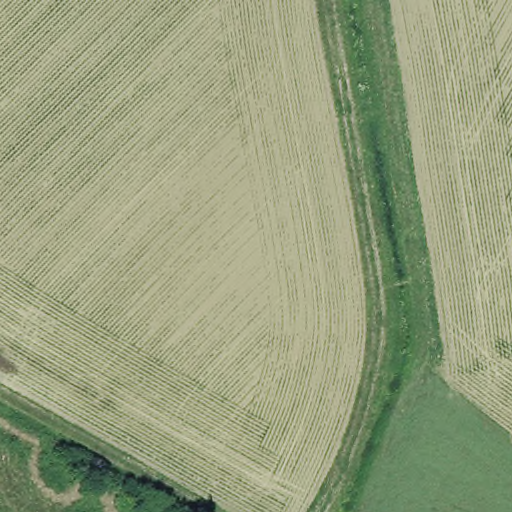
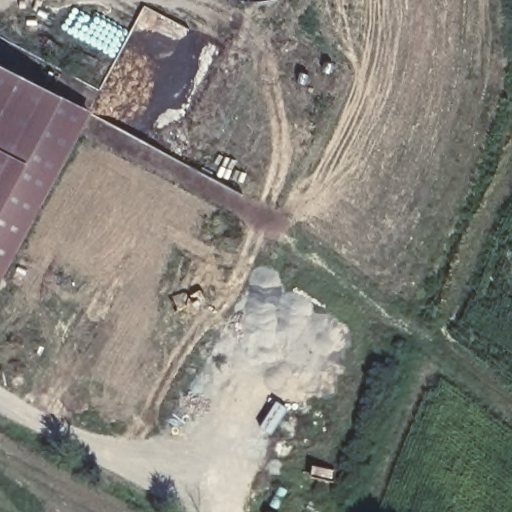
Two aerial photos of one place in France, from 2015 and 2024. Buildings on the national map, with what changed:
new [(0,282),(0,60),(93,110),(0,282)]

